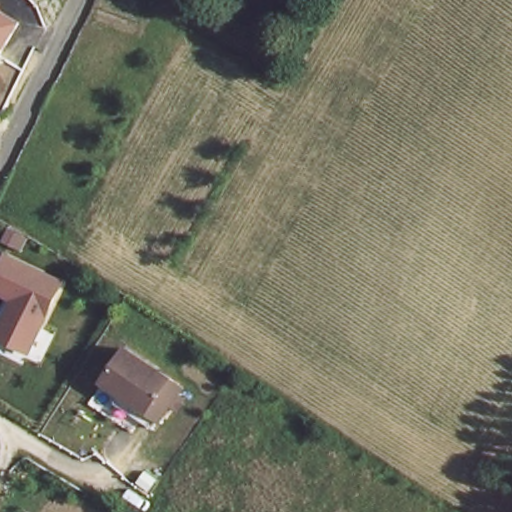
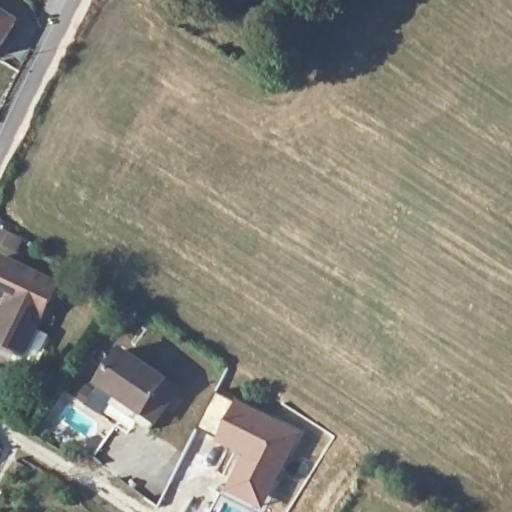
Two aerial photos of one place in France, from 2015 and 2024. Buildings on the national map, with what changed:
unchanged [(0,12),(17,22),(0,50),(0,12)]
unchanged [(0,344),(0,319),(8,303),(0,299),(0,255),(1,252),(62,282),(29,357),(0,344)]
unchanged [(115,388),(97,377),(119,344),(175,380),(147,422),(135,413),(110,397),(115,388)]
new [(300,431),(262,507),(226,488),(244,454),(217,439),(218,437),(198,426),(216,391),(236,401),(237,399),(300,431)]

